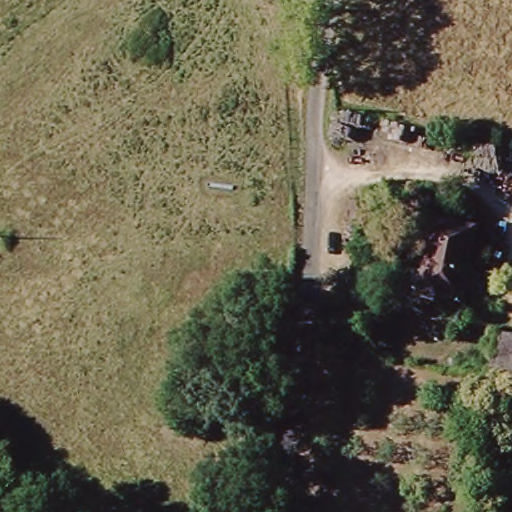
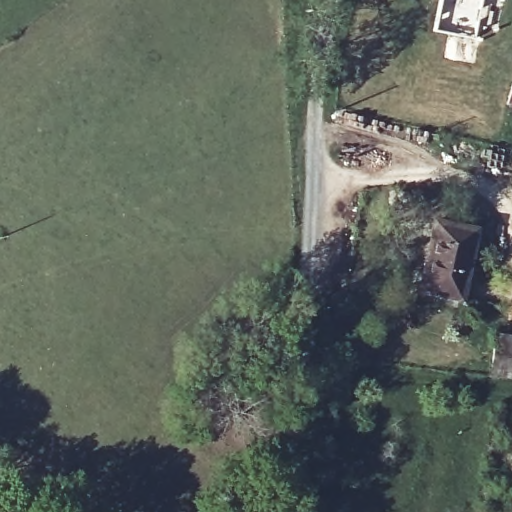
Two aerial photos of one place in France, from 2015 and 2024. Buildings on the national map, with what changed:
new [(438,0),(482,0),(475,38),(432,31),(438,0)]
unchanged [(427,291),(441,222),(456,224),(446,294),(427,291)]
unchanged [(481,229),(468,298),(446,294),(456,224),(481,229)]
unchanged [(497,376),(502,331),(512,333),(512,379),(497,376)]

